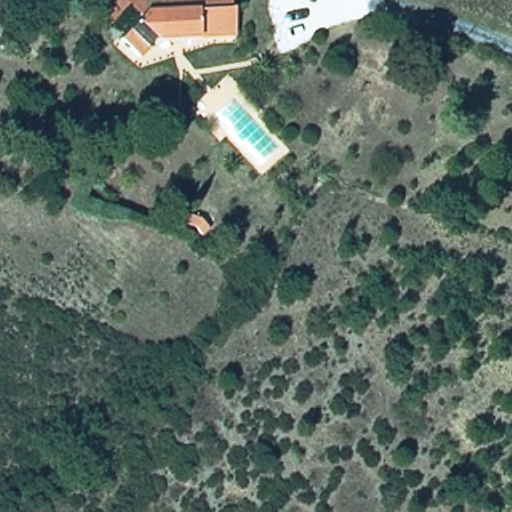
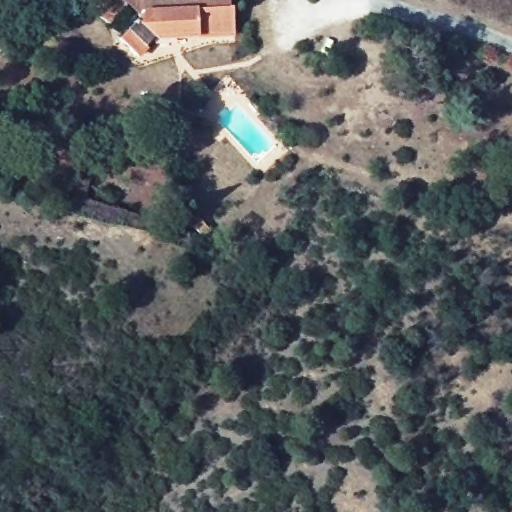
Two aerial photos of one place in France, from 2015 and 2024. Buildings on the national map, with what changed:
unchanged [(233,0),(235,36),(157,39),(138,57),(119,35),(139,16),(127,4),(107,24),(91,6),(98,0),(233,0)]

